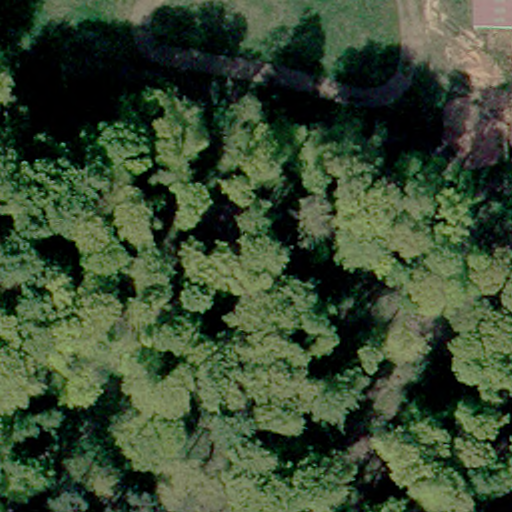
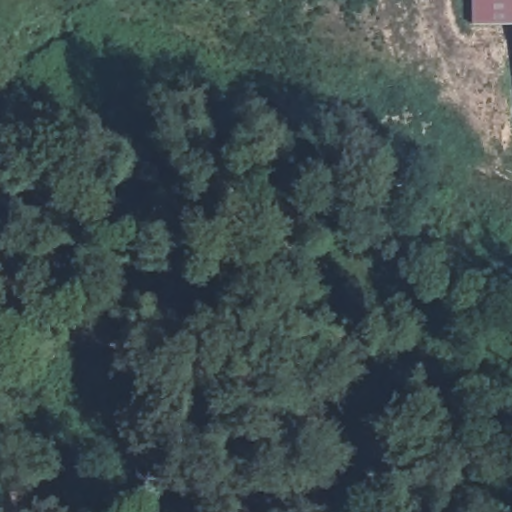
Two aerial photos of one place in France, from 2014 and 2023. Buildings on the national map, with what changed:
unchanged [(473,22),(473,0),(512,0),(512,22),(473,22)]

